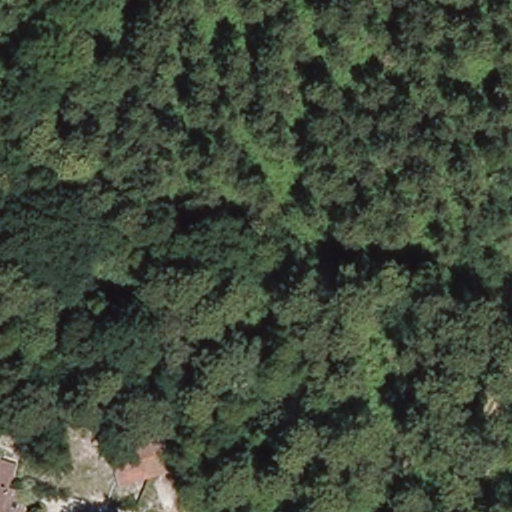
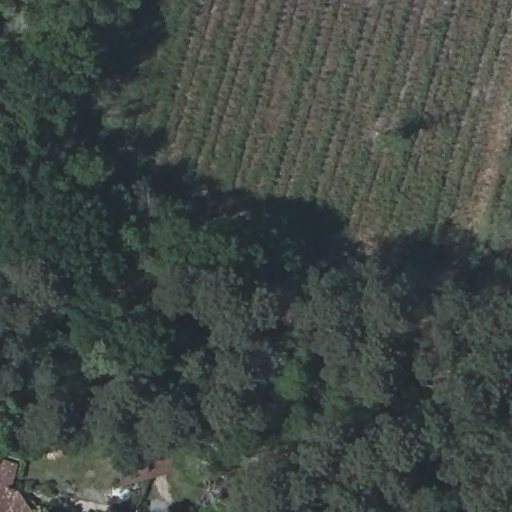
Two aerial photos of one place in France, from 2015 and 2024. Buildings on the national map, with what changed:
unchanged [(17,466),(7,496),(32,507),(29,512),(0,512),(0,461),(17,466)]

